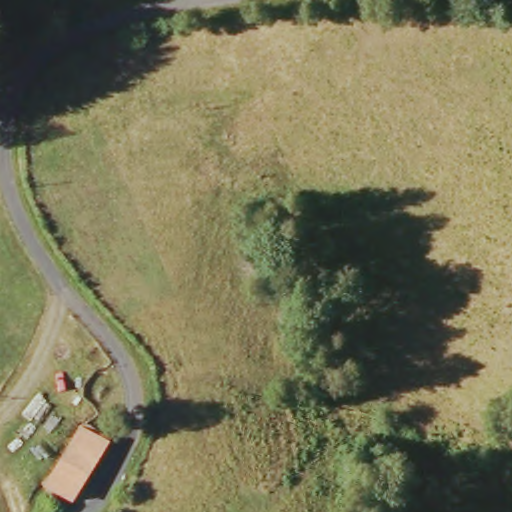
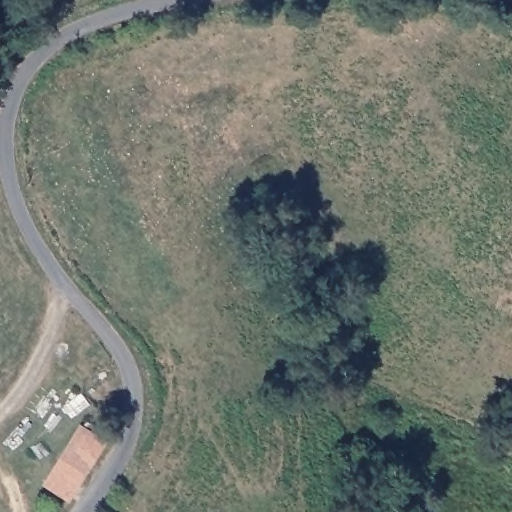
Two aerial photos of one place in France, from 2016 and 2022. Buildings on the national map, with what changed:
unchanged [(72,502),(44,485),(81,425),(110,442),(72,502)]

